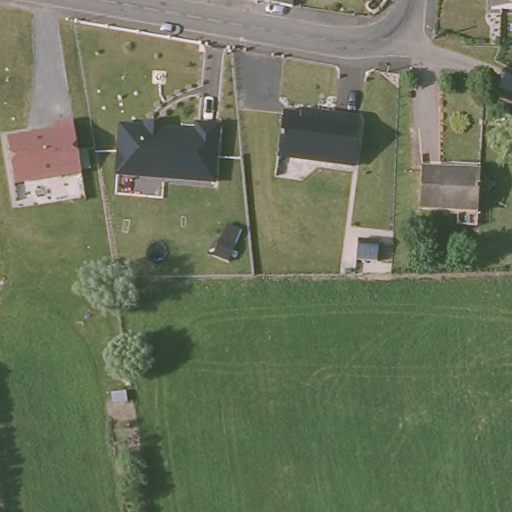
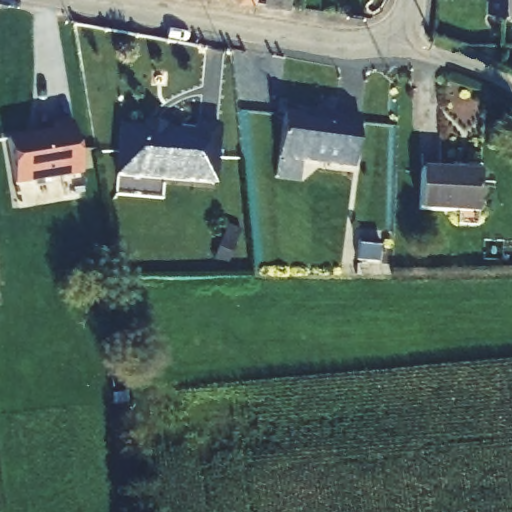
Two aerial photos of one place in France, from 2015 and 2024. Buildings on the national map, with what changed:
unchanged [(278,0),(292,0),(291,6),(278,4),(278,0)]
unchanged [(512,11),(491,11),(491,0),(512,0),(512,11)]
unchanged [(283,110),(359,121),(353,167),(278,156),(283,110)]
unchanged [(8,138),(56,130),(55,122),(74,118),(75,126),(81,172),(15,183),(8,138)]
unchanged [(118,123),(146,126),(146,120),(167,122),(168,128),(194,130),(195,123),(220,127),(216,181),(117,175),(118,123)]
unchanged [(482,215),(420,217),(417,175),(480,174),(482,215)]

